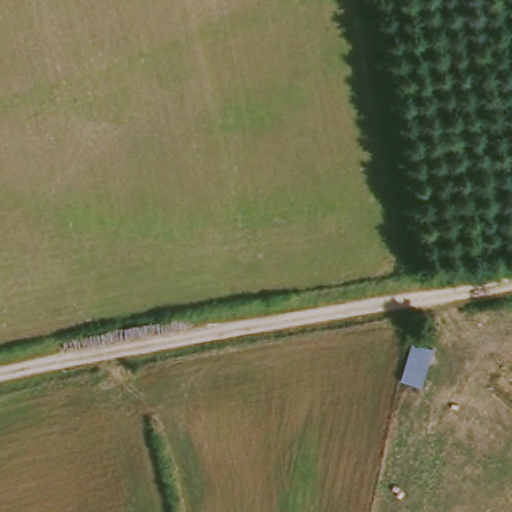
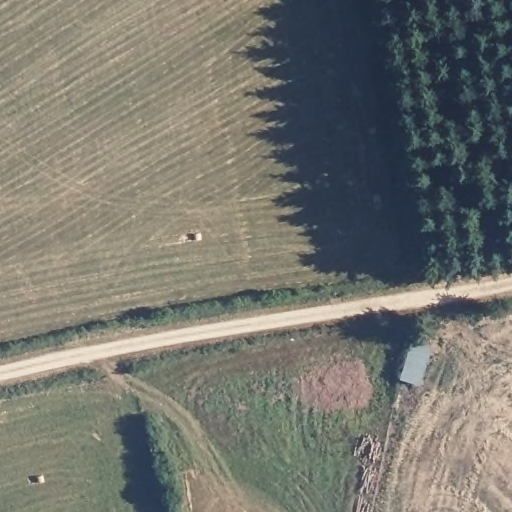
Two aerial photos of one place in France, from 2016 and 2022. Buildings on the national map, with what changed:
unchanged [(406,339),(429,344),(418,388),(393,379),(406,339)]

